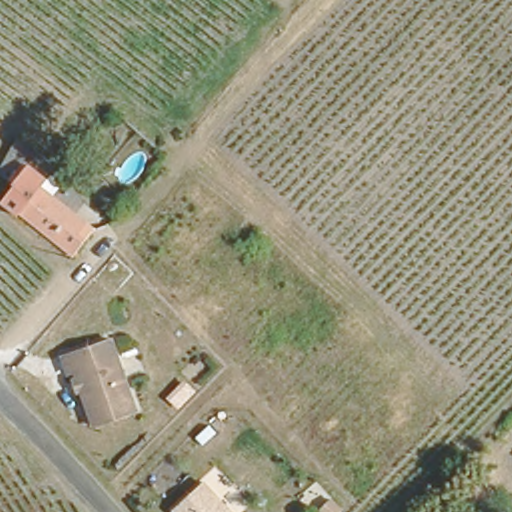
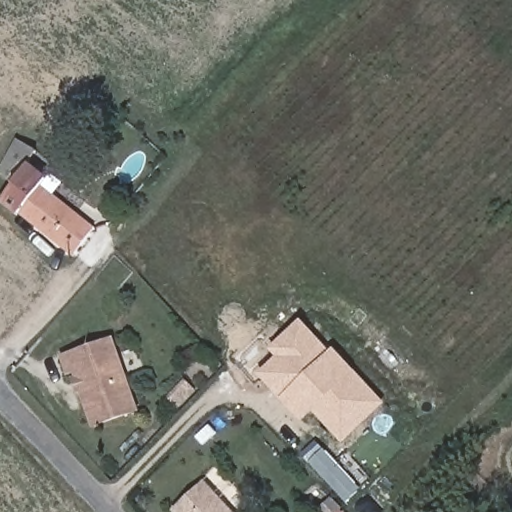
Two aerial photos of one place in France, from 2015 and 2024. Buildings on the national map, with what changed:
unchanged [(24,136),(42,151),(30,166),(44,177),(41,181),(52,189),(33,215),(23,207),(26,204),(8,189),(16,177),(4,167),(0,165),(14,149),(24,136)]
unchanged [(97,222),(76,248),(33,215),(52,189),(97,222)]
new [(276,356),(269,349),(301,320),(330,353),(336,349),(354,371),(387,403),(342,443),(314,412),(303,421),(282,399),(258,373),(276,356)]
unchanged [(139,411),(90,427),(79,392),(75,393),(69,375),(64,376),(58,352),(112,337),(139,411)]
unchanged [(170,509),(202,479),(233,512),(173,512),(170,509)]
unchanged [(340,512),(313,512),(330,495),(344,507),(340,512)]

